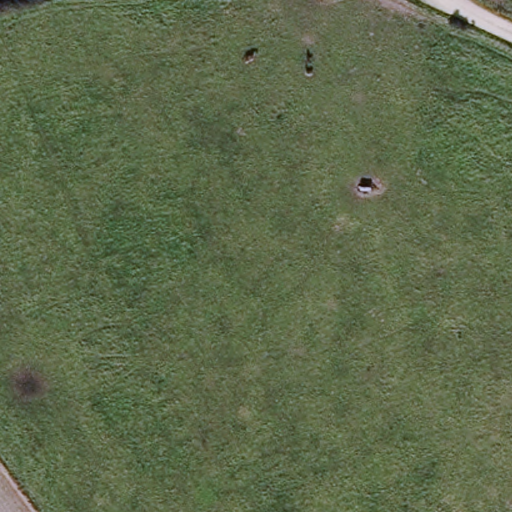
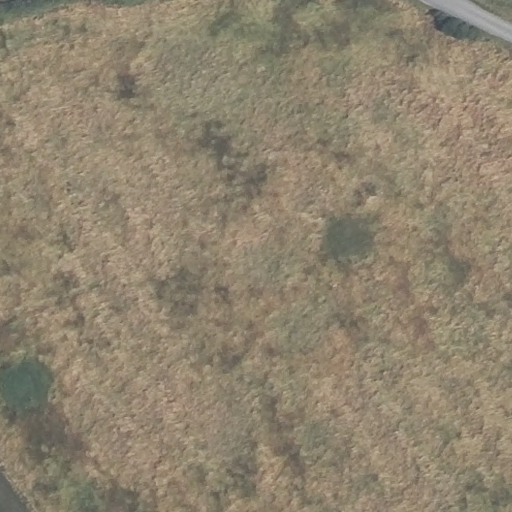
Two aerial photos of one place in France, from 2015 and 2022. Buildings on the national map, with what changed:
[]

